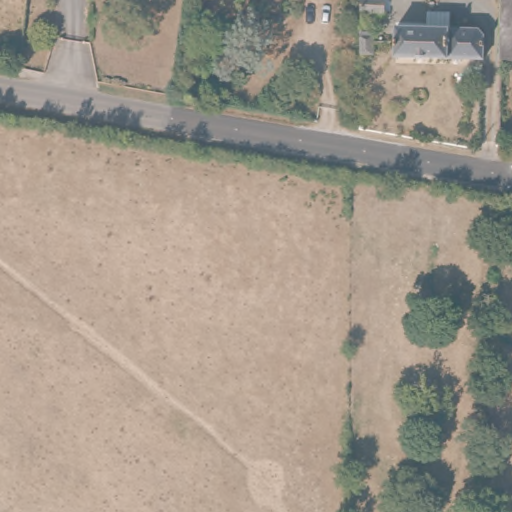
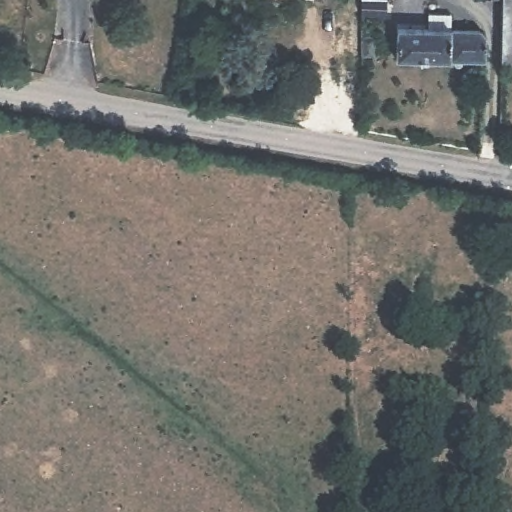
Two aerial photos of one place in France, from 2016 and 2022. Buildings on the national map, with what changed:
unchanged [(361,14),(362,0),(390,0),(390,15),(361,14)]
unchanged [(498,0),(512,0),(512,57),(496,57),(498,0)]
unchanged [(480,22),(489,28),(489,52),(400,54),(398,22),(480,22)]
unchanged [(371,29),(372,55),(357,55),(357,30),(371,29)]

